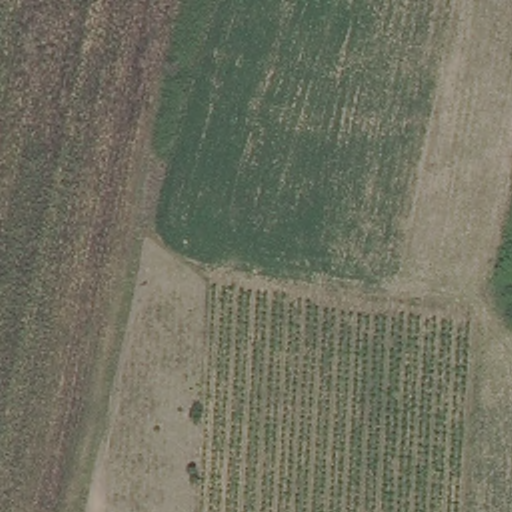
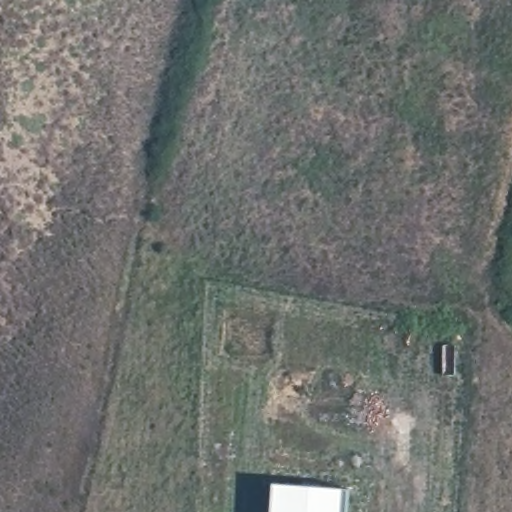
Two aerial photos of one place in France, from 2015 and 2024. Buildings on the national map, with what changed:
new [(276,483),(351,488),(350,512),(275,512),(276,483)]

